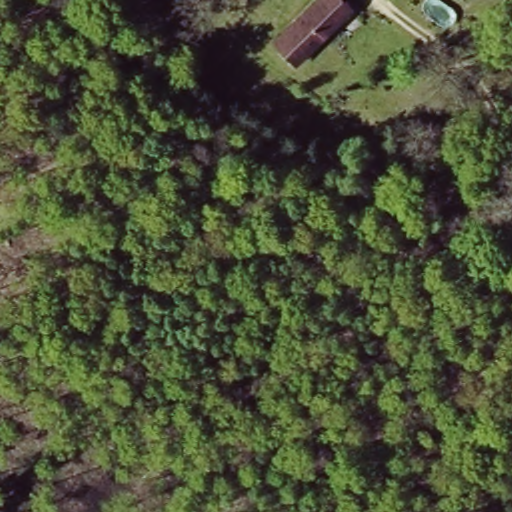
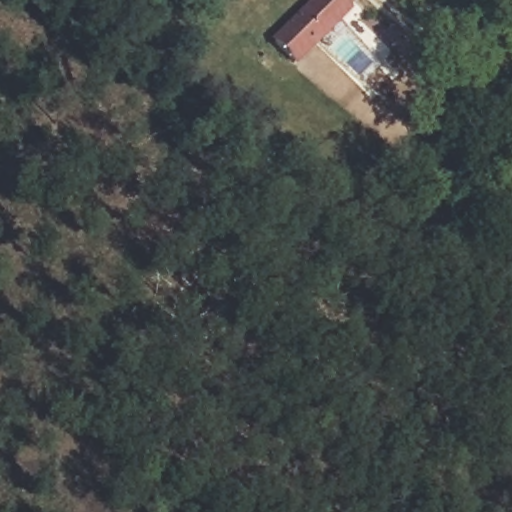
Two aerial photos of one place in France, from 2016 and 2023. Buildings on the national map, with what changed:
unchanged [(305,0),(338,0),(349,6),(317,58),(282,39),(305,0)]

